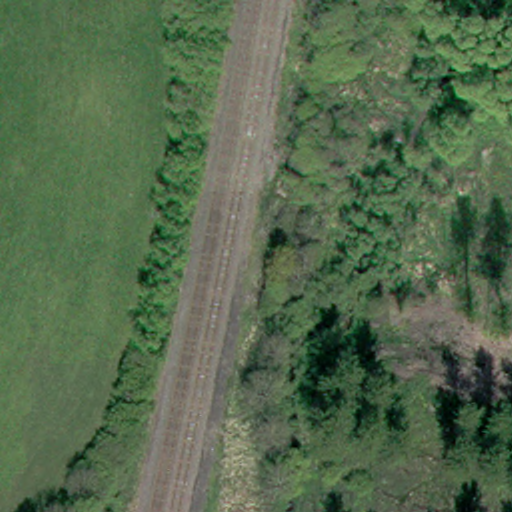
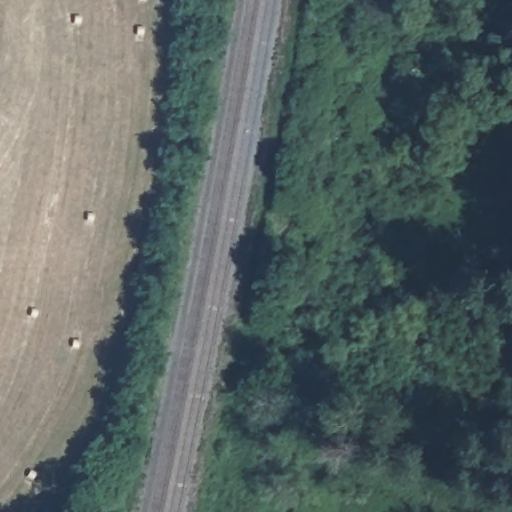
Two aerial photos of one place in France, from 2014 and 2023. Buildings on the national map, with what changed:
[]

